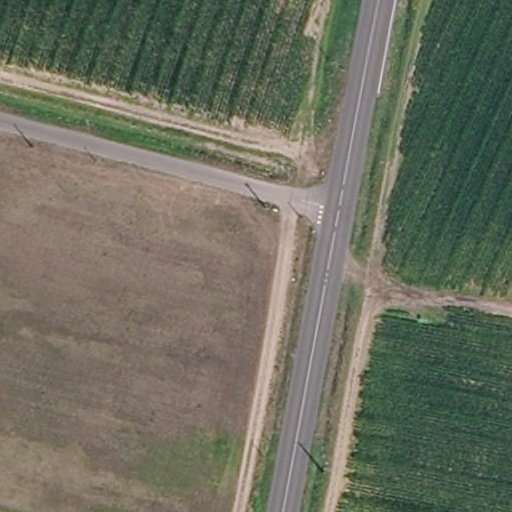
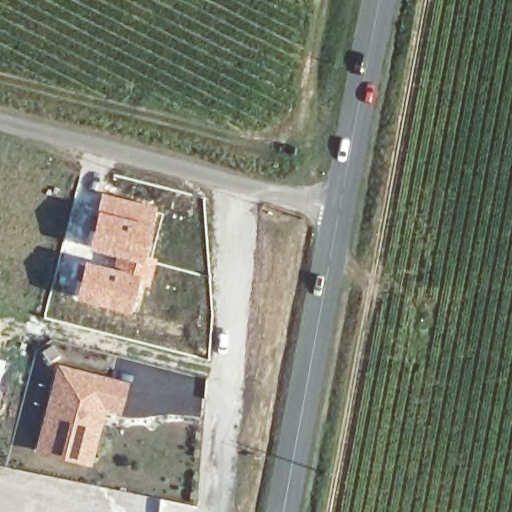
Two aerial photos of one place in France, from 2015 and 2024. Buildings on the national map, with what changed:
new [(101,193),(159,208),(146,259),(155,261),(151,280),(142,277),(110,267),(112,258),(86,250),(101,193)]
new [(82,260),(110,267),(142,277),(132,316),(73,300),(82,260)]
new [(44,435),(60,370),(126,386),(121,410),(103,406),(93,448),(44,435)]

